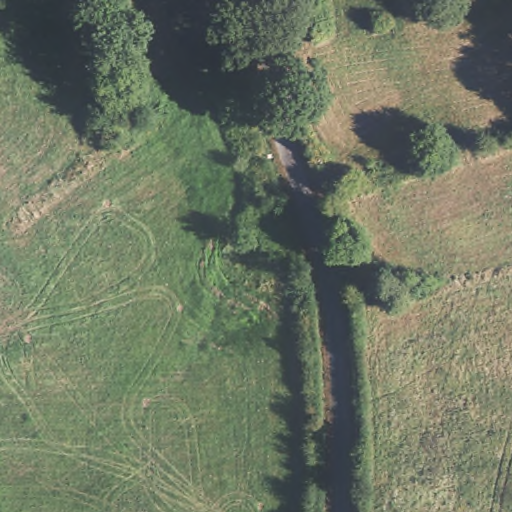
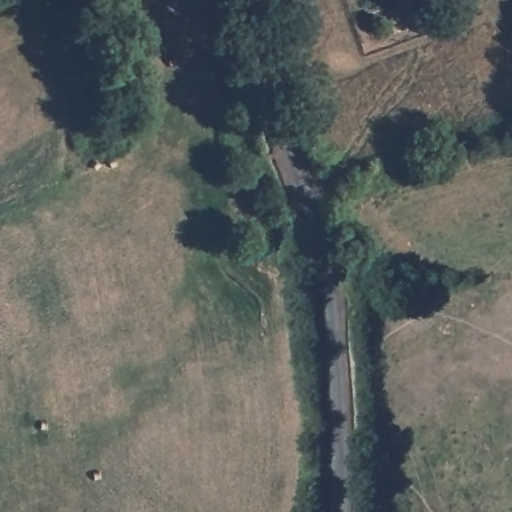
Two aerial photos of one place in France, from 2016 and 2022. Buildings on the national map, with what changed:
[]

